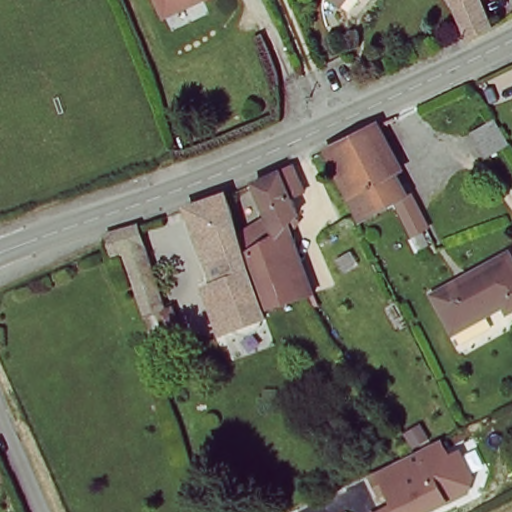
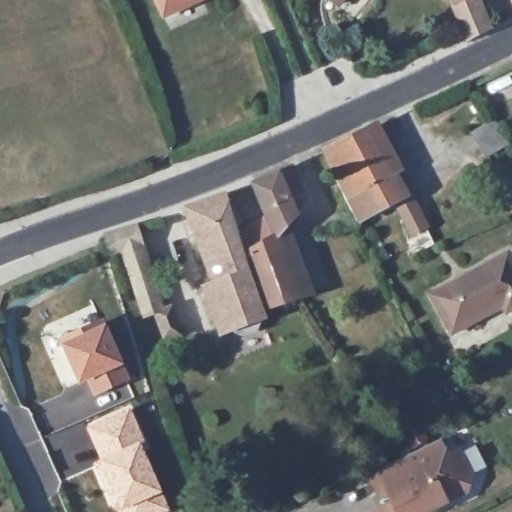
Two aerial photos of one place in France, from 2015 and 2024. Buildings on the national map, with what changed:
unchanged [(184,8),(182,4),(156,15),(150,0),(203,0),(184,8)]
unchanged [(340,2),(336,0),(342,0),(340,2)]
unchanged [(490,5),(494,14),(463,31),(449,0),(477,0),(481,9),(490,5)]
unchanged [(497,147),(477,159),(463,136),(483,124),(497,147)]
unchanged [(370,127),(410,206),(399,212),(393,201),(354,220),(322,151),(370,127)]
unchanged [(246,179),(286,160),(296,183),(284,192),(290,207),(280,219),(305,286),(292,291),(256,306),(232,229),(262,211),(246,179)]
unchanged [(209,273),(180,204),(219,189),(232,229),(256,306),(259,314),(220,326),(205,280),(209,273)]
unchanged [(425,224),(412,231),(404,217),(417,210),(425,224)]
unchanged [(146,318),(121,249),(111,252),(103,233),(136,227),(162,301),(170,299),(182,335),(165,337),(157,316),(146,318)]
unchanged [(434,294),(510,251),(512,255),(512,310),(510,311),(506,304),(489,313),(456,332),(453,327),(434,294)]
new [(59,340),(103,319),(106,326),(124,365),(130,382),(94,397),(87,381),(77,385),(60,346),(59,340)]
new [(142,446),(163,491),(172,512),(121,512),(120,508),(114,510),(94,464),(101,461),(87,427),(129,408),(142,446)]
unchanged [(382,512),(389,508),(373,476),(442,442),(462,452),(476,479),(470,495),(435,512),(382,512)]

